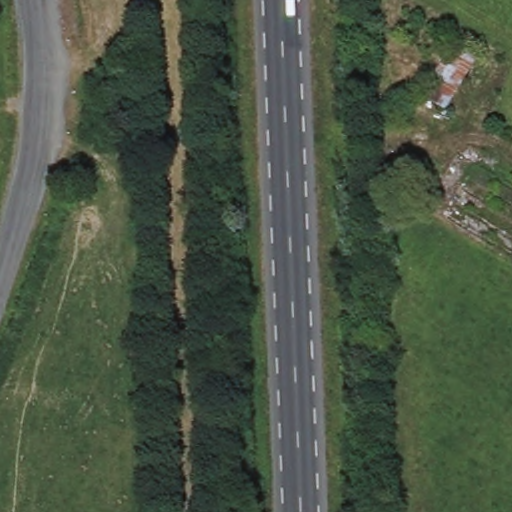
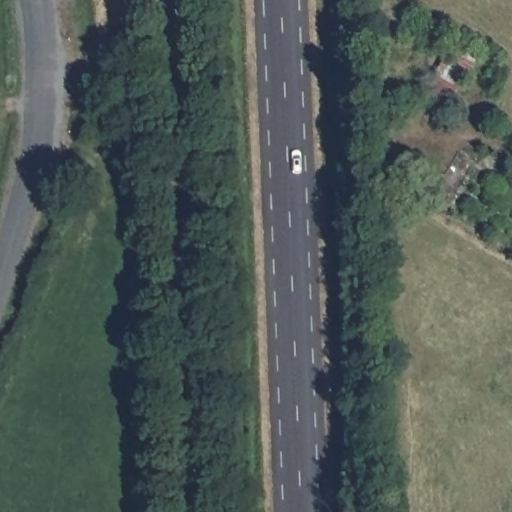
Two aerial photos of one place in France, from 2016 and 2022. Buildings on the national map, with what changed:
unchanged [(481,56),(467,84),(438,69),(451,41),(481,56)]

